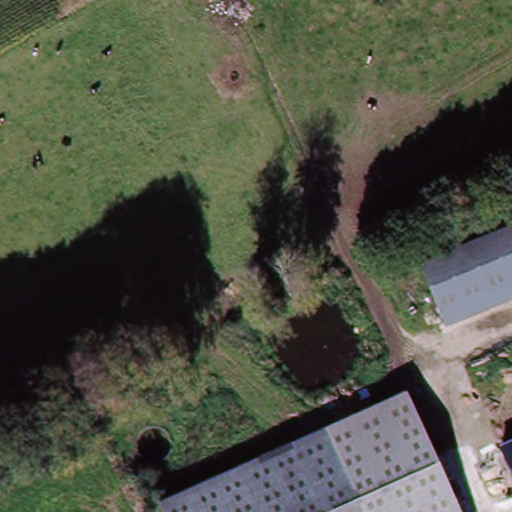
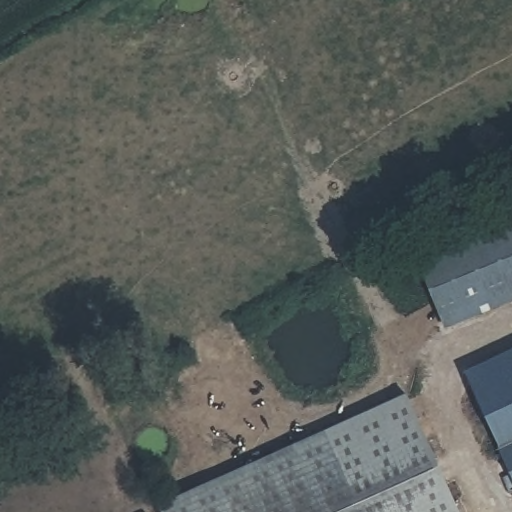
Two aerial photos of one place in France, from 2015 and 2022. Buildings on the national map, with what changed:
unchanged [(444,331),(418,269),(512,229),(512,302),(444,331)]
new [(499,450),(503,448),(466,375),(512,353),(512,477),(499,450)]
unchanged [(408,397),(461,512),(359,512),(336,462),(324,434),(408,397)]
unchanged [(324,434),(358,512),(159,512),(158,510),(324,434)]

